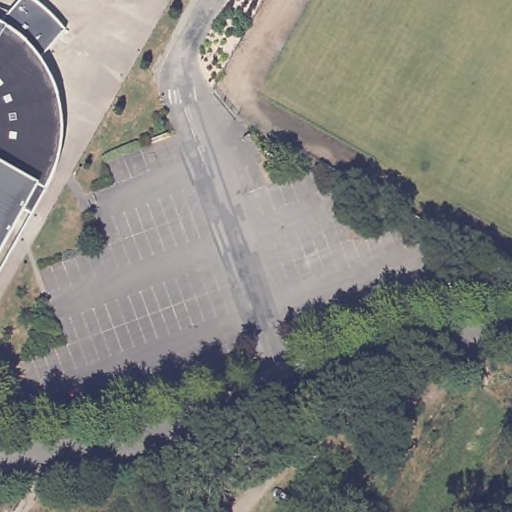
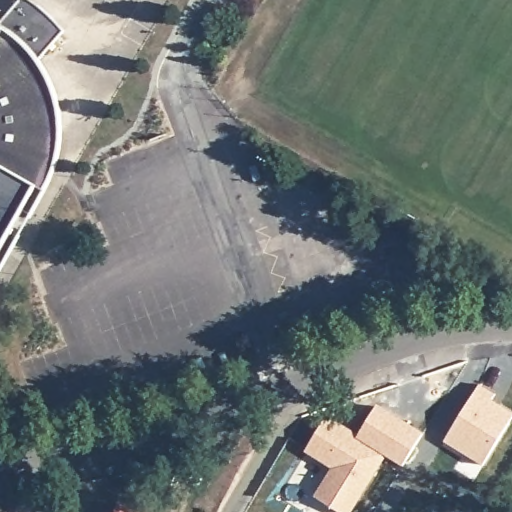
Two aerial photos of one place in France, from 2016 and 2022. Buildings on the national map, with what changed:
unchanged [(21,33),(32,44),(41,55),(49,68),(55,81),(58,89),(61,102),(63,116),(64,130),(62,144),(61,149),(58,163),(53,177),(45,190),(43,195),(31,215),(23,210),(0,251),(0,19),(10,24),(21,33)]
new [(484,465),(444,440),(480,383),(496,393),(492,399),(512,412),(512,420),(484,465)]
new [(424,432),(403,465),(386,455),(352,512),(340,512),(314,495),(330,468),(304,452),(327,414),(359,434),(378,403),(424,432)]

